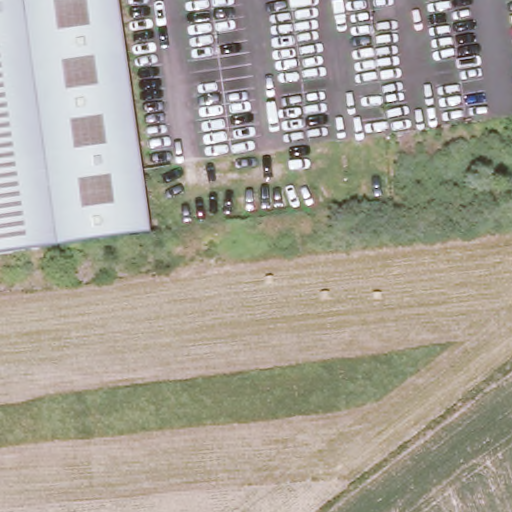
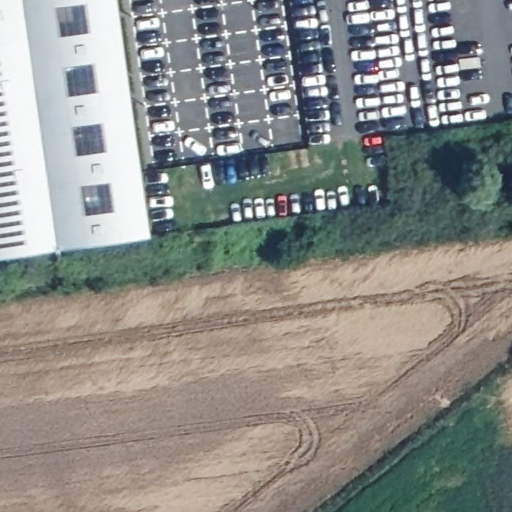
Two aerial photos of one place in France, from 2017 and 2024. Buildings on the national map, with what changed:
unchanged [(0,248),(0,0),(115,0),(148,226),(0,248)]

